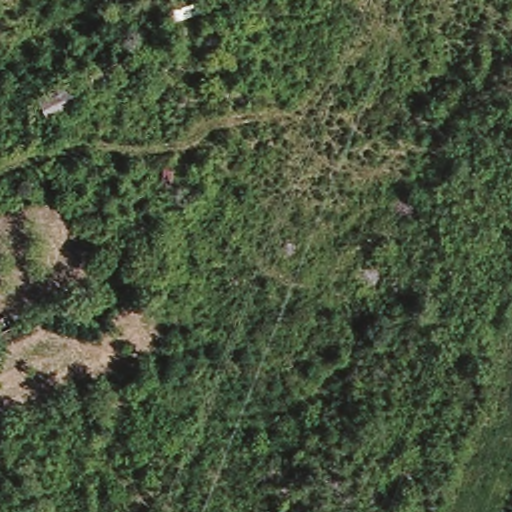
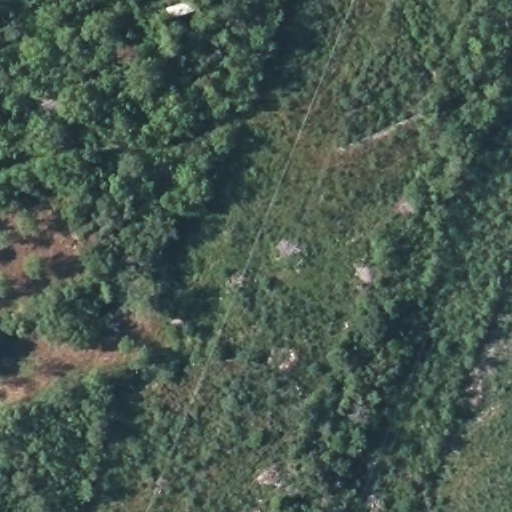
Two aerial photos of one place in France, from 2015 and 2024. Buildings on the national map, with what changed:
unchanged [(129,75),(43,116),(35,91),(120,53),(129,75)]
unchanged [(5,341),(0,332),(0,318),(16,305),(30,326),(5,341)]

